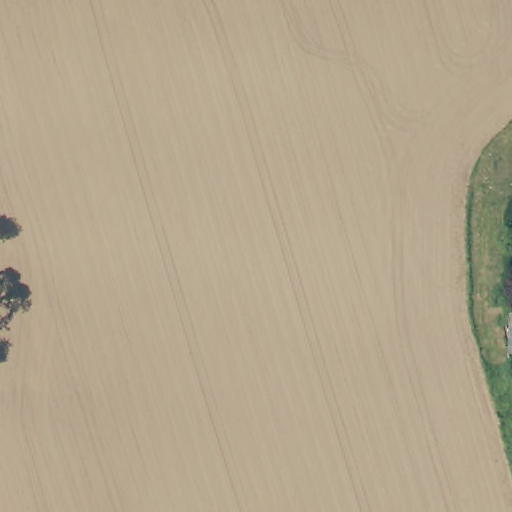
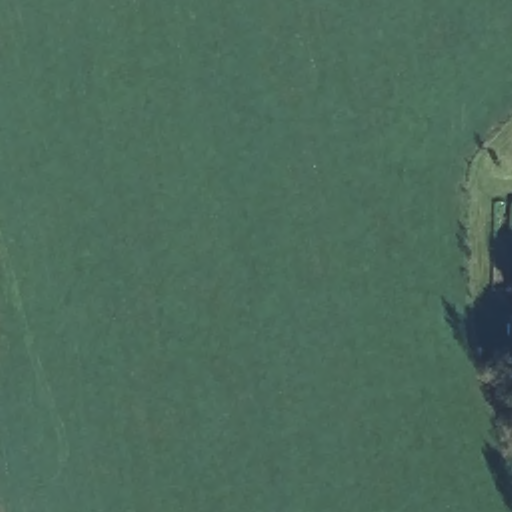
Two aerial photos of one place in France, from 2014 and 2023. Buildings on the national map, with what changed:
unchanged [(510,308),(512,308),(512,353),(510,353),(510,308)]

